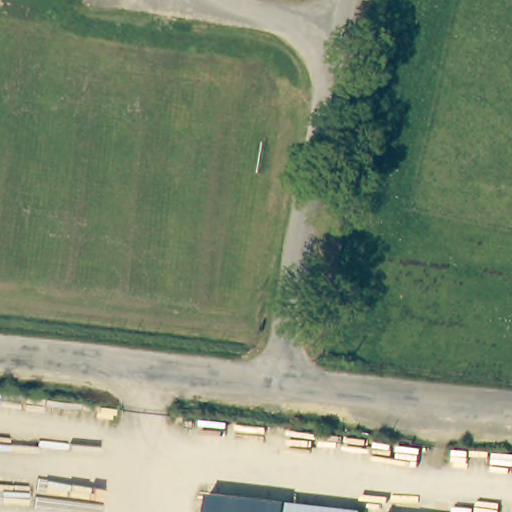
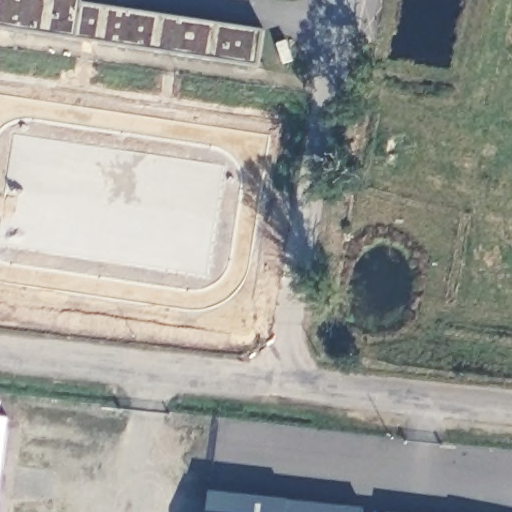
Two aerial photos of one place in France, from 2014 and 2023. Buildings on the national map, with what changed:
new [(85,0),(84,4),(264,32),(258,68),(0,27),(0,0),(85,0)]
new [(8,419),(0,492),(0,418),(8,419)]
unchanged [(211,493),(361,510),(361,512),(210,512),(211,493)]

